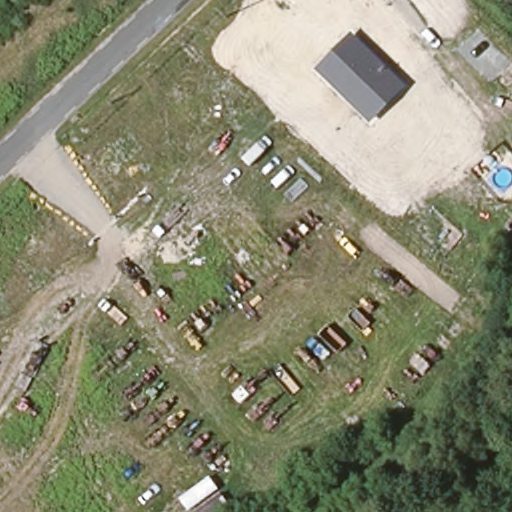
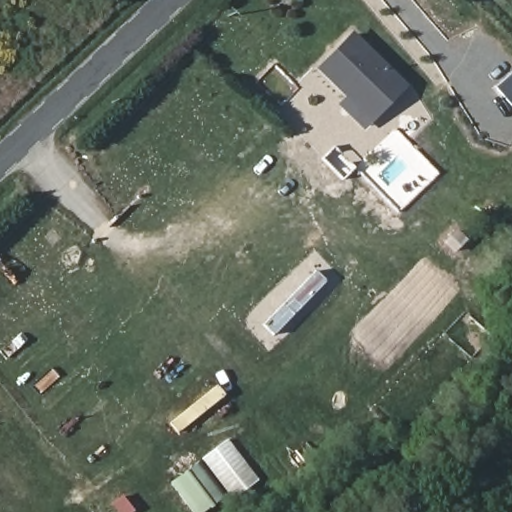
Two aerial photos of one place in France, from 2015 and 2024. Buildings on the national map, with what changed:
unchanged [(370,118),(318,66),(351,35),(402,85),(370,118)]
new [(227,439),(259,480),(234,496),(227,495),(204,512),(193,512),(171,482),(227,439)]

